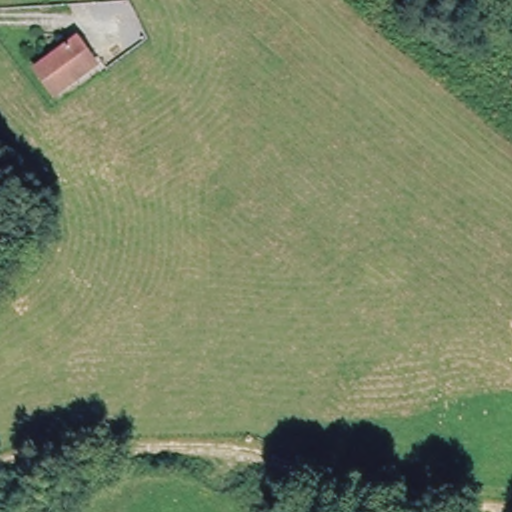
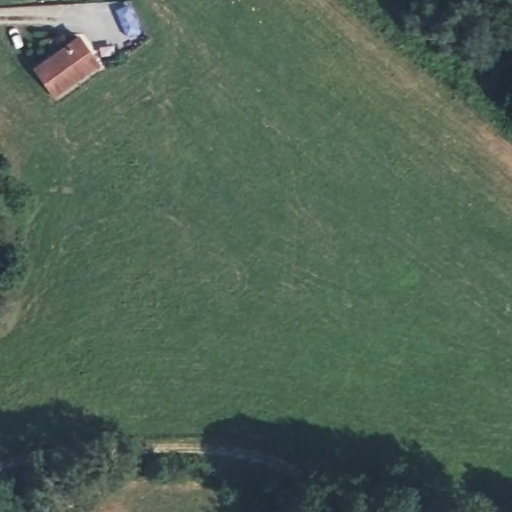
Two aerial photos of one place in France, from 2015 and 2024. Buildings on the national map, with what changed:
unchanged [(54,92),(40,62),(84,41),(99,72),(54,92)]

